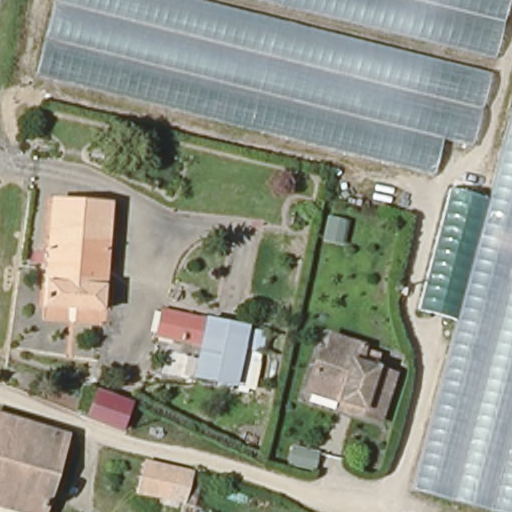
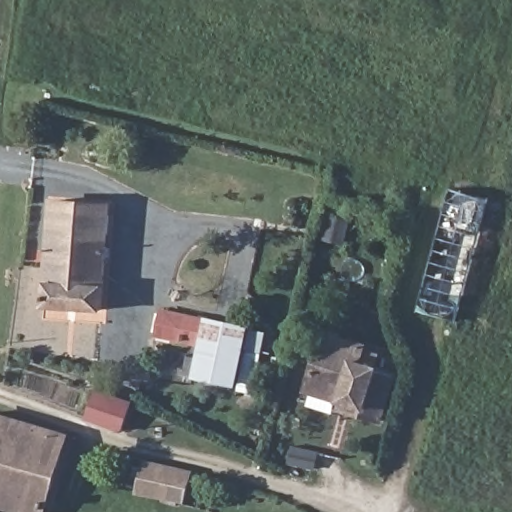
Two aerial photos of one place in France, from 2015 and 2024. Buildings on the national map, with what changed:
demolished [(35,78),(51,0),(512,0),(512,9),(470,180),(35,78)]
demolished [(492,203),(491,203),(512,121),(512,512),(475,512),(412,496),(456,326),(460,327),(492,203)]
unchanged [(460,327),(456,326),(436,320),(422,316),(455,193),(491,203),(492,203),(460,327)]
unchanged [(111,208),(105,314),(51,311),(55,204),(111,208)]
unchanged [(191,361),(201,364),(204,348),(171,341),(160,339),(166,313),(176,315),(247,331),(249,331),(236,388),(188,376),(191,361)]
unchanged [(268,337),(264,354),(251,350),(253,334),(268,337)]
unchanged [(379,427),(353,418),(356,412),(343,407),(308,397),(315,374),(321,356),(326,358),(331,341),(365,352),(364,355),(377,361),(373,374),(393,381),(379,427)]
unchanged [(89,423),(101,391),(135,406),(123,435),(89,423)]
unchanged [(67,440),(46,512),(28,512),(0,504),(0,420),(67,440)]
unchanged [(185,506),(140,496),(147,464),(192,474),(185,506)]

